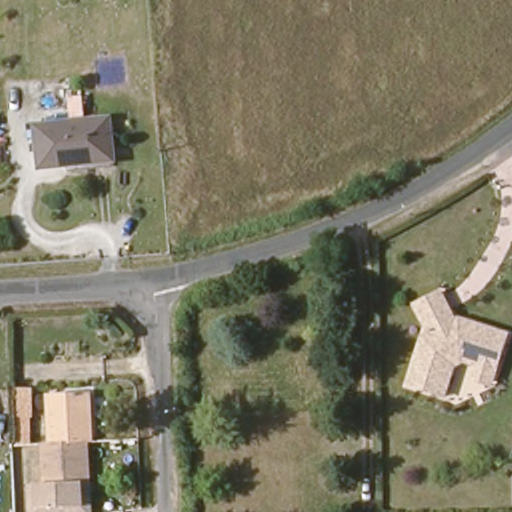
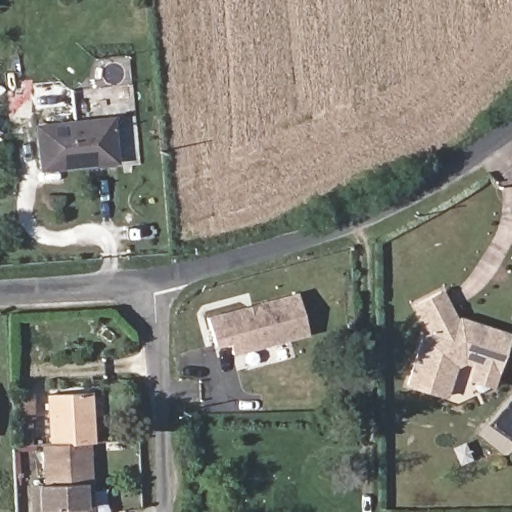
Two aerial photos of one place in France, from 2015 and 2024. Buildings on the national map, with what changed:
unchanged [(113,156),(79,159),(80,167),(40,168),(36,122),(110,117),(113,156)]
new [(233,356),(229,343),(215,347),(206,316),(296,292),(308,334),(233,356)]
unchanged [(485,379),(488,365),(479,363),(474,354),(459,359),(454,396),(416,389),(424,341),(436,343),(438,337),(423,306),(447,295),(461,325),(470,327),(472,319),(512,329),(512,350),(508,371),(505,385),(485,379)]
unchanged [(41,482),(39,442),(46,441),(44,392),(84,390),(84,393),(95,392),(100,442),(91,442),(95,479),(84,479),(85,512),(46,512),(44,482),(41,482)]

